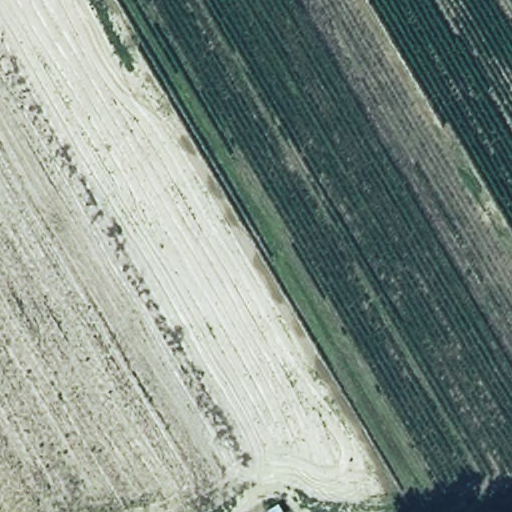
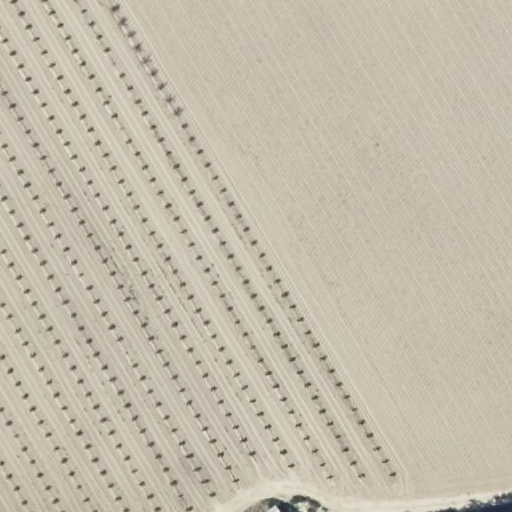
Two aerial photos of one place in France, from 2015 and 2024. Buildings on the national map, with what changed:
unchanged [(264,512),(264,510),(280,507),(280,512),(264,512)]

